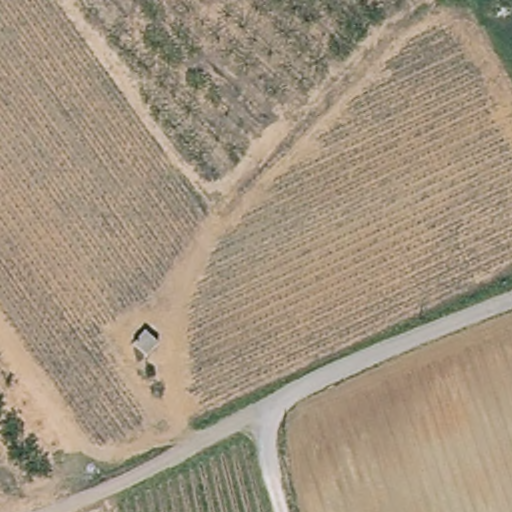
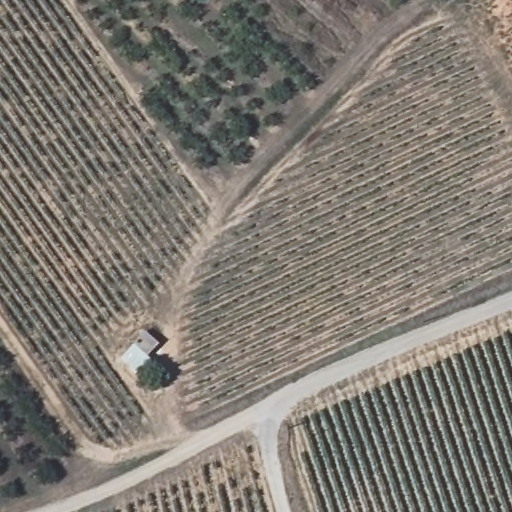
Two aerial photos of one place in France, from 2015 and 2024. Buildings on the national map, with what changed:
unchanged [(130,344),(142,332),(155,348),(143,360),(130,344)]

